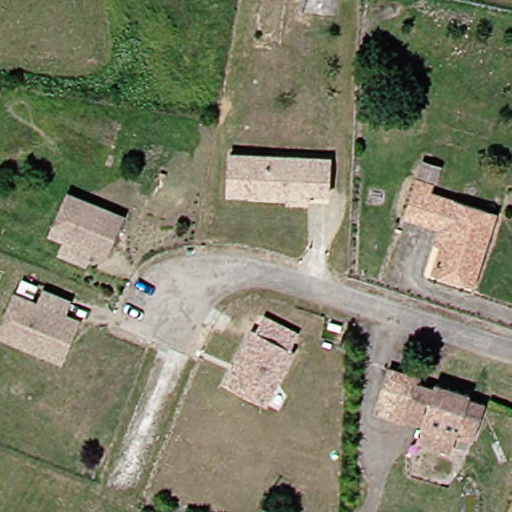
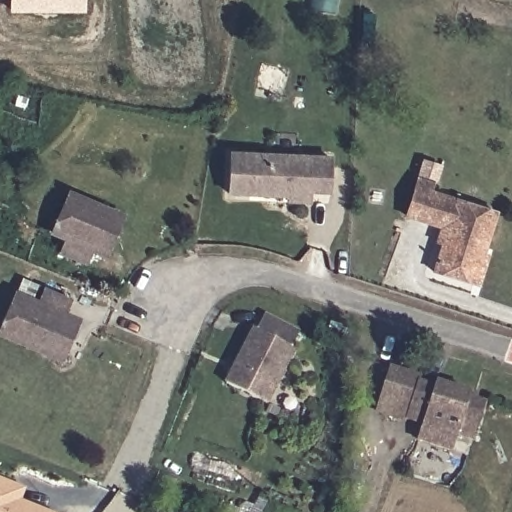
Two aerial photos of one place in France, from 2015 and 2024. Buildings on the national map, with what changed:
new [(84,14),(9,12),(9,0),(84,0),(84,14)]
unchanged [(289,203),(288,195),(228,192),(232,152),(327,159),(326,191),(307,192),(306,202),(289,203)]
unchanged [(470,277),(438,265),(448,222),(424,213),(422,216),(402,208),(412,177),(435,184),(504,209),(491,249),(481,282),(470,277)]
unchanged [(101,251),(89,245),(81,261),(64,254),(70,237),(47,229),(63,189),(104,205),(118,210),(101,251)]
unchanged [(34,347),(0,335),(0,305),(6,291),(29,300),(36,285),(55,293),(49,308),(61,312),(45,353),(34,347)]
unchanged [(267,405),(225,386),(252,328),(256,331),(262,317),(296,333),(291,348),(294,351),(267,405)]
unchanged [(435,426),(437,417),(417,412),(416,421),(400,416),(387,411),(400,367),(413,372),(428,376),(426,382),(449,387),(451,382),(478,393),(478,399),(492,405),(482,432),(466,428),(463,436),(458,452),(430,442),(435,426)]
new [(24,502),(18,500),(49,512),(0,512),(0,479),(23,488),(29,491),(24,502)]

